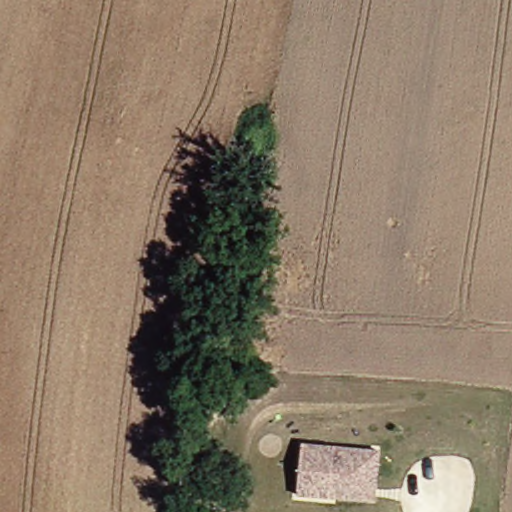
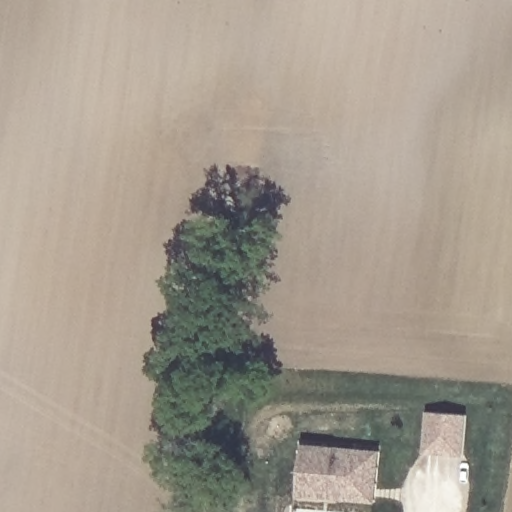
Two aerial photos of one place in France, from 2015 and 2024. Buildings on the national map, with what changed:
new [(464,456),(424,453),(427,412),(467,415),(464,456)]
unchanged [(379,502),(332,497),(299,493),(303,442),(375,451),(383,452),(379,502)]

